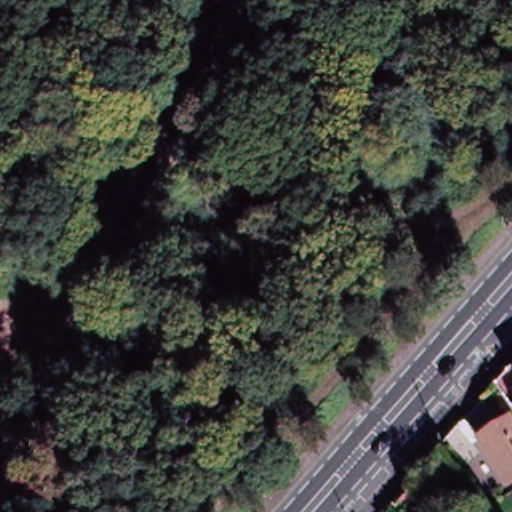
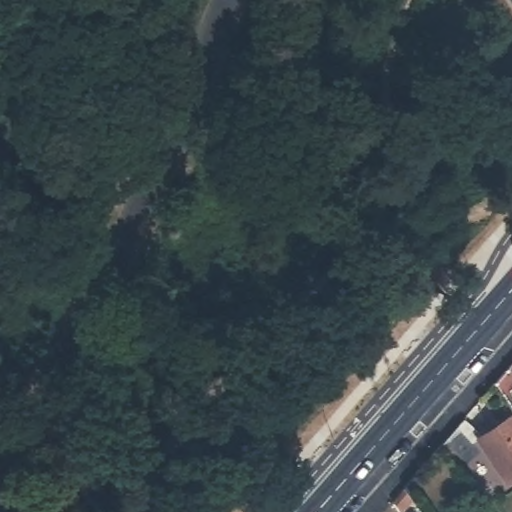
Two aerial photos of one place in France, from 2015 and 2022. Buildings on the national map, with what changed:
unchanged [(512,406),(496,383),(512,366),(512,406)]
unchanged [(512,484),(481,440),(479,436),(495,425),(497,428),(509,420),(512,424),(512,484)]

